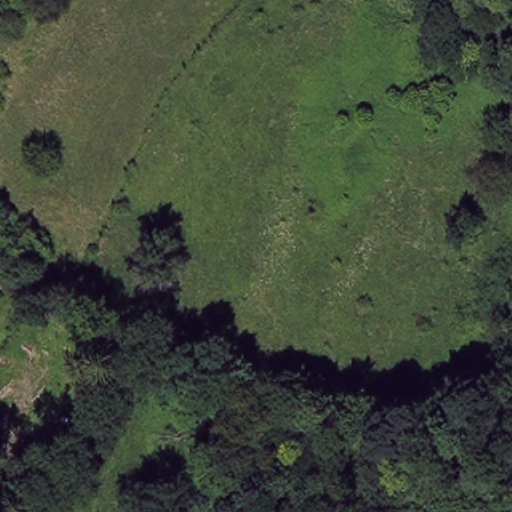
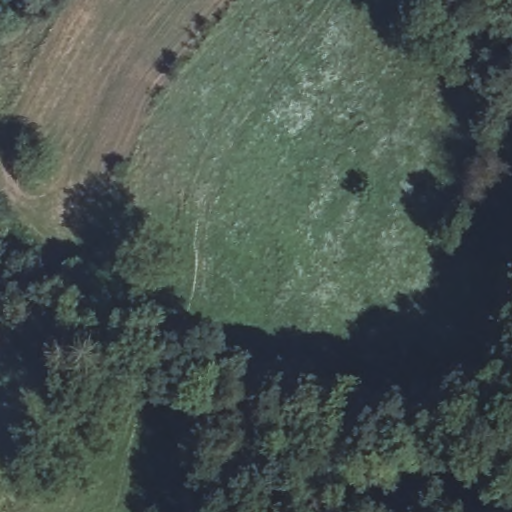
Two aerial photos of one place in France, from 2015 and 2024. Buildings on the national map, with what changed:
[]

